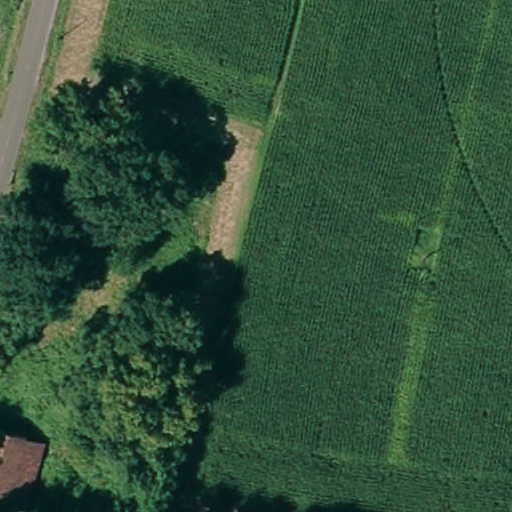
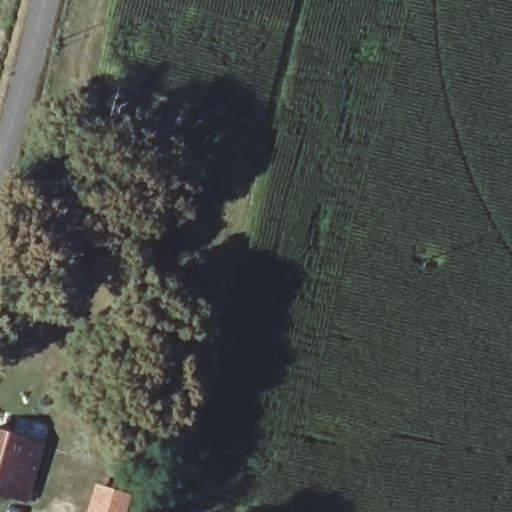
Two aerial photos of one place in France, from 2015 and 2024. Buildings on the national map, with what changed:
unchanged [(9,501),(0,497),(0,433),(49,449),(41,474),(28,507),(9,501)]
new [(99,484),(127,494),(122,512),(90,512),(99,484)]

